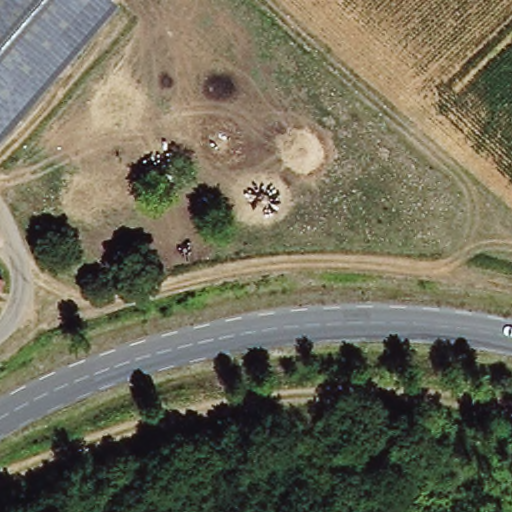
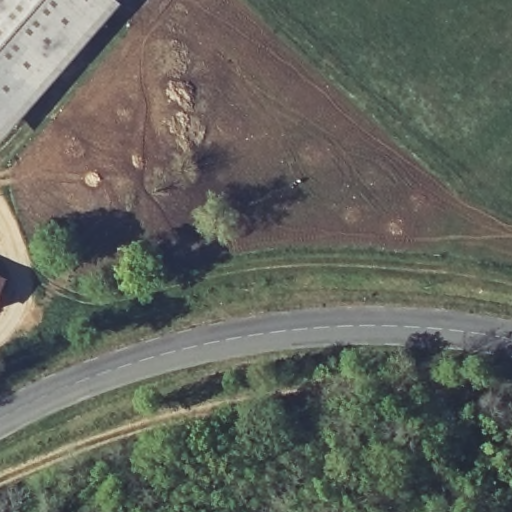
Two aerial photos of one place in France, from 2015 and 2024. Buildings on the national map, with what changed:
unchanged [(112,0),(120,7),(0,141),(0,0),(112,0)]

